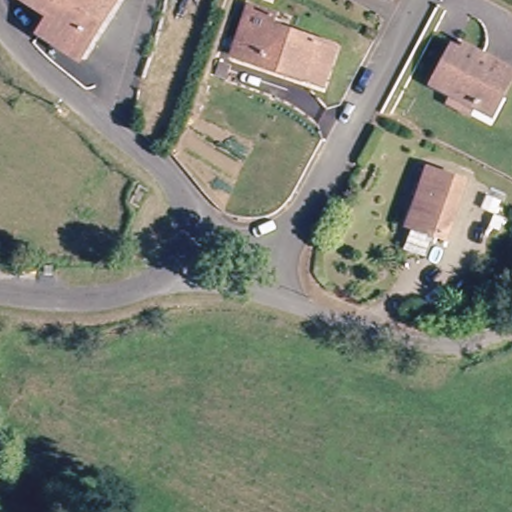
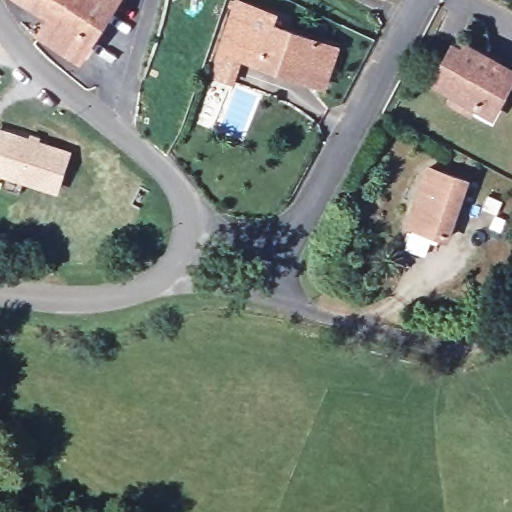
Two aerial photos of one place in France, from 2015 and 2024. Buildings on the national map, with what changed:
unchanged [(82,61),(45,39),(55,21),(20,0),(118,0),(82,61)]
unchanged [(249,7),(276,14),(272,26),(333,42),(322,81),(295,74),(296,70),(265,62),(260,53),(237,47),(249,7)]
unchanged [(237,47),(260,53),(265,62),(296,70),(295,74),(292,84),(231,67),(237,47)]
unchanged [(460,99),(440,88),(458,52),(467,57),(470,51),(482,57),(512,72),(512,89),(504,105),(497,118),(481,110),(477,108),(472,117),(455,107),(460,99)]
new [(0,175),(0,128),(29,138),(30,132),(42,136),(40,142),(71,152),(60,195),(0,175)]
unchanged [(430,173),(465,185),(445,241),(411,229),(430,173)]
demolished [(122,194),(136,203),(128,218),(114,210),(122,194)]

